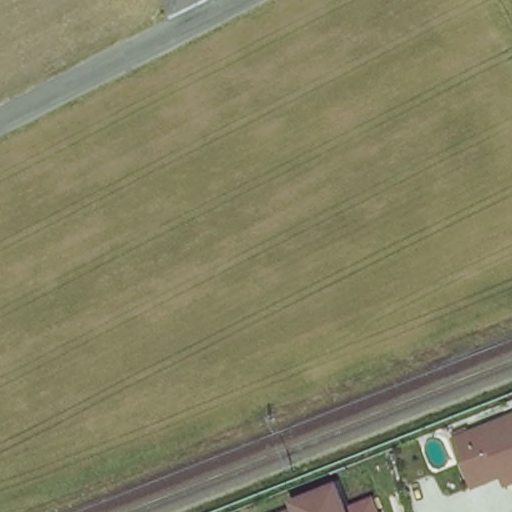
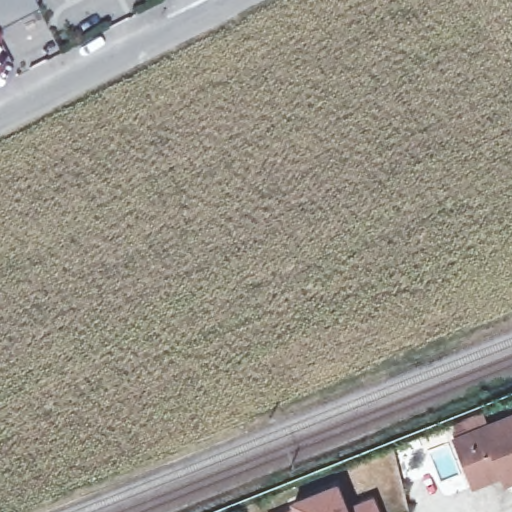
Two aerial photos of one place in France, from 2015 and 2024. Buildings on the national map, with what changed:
new [(5,27),(9,36),(0,40),(0,0),(44,0),(47,6),(5,27)]
unchanged [(495,475),(466,486),(448,439),(450,438),(448,433),(461,428),(463,433),(512,414),(512,479),(498,484),(495,475)]
unchanged [(292,508),(289,502),(331,485),(341,509),(367,498),(372,512),(283,512),(292,508)]

